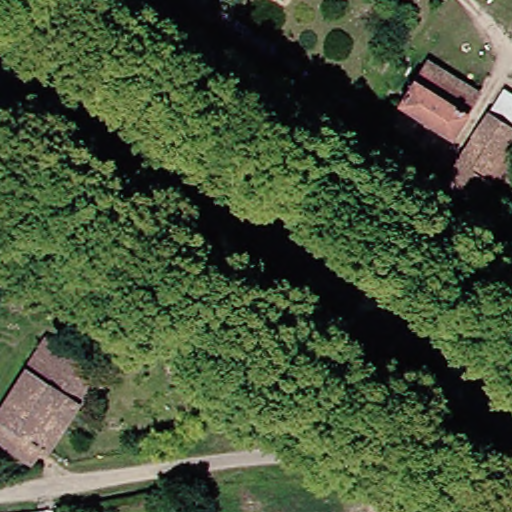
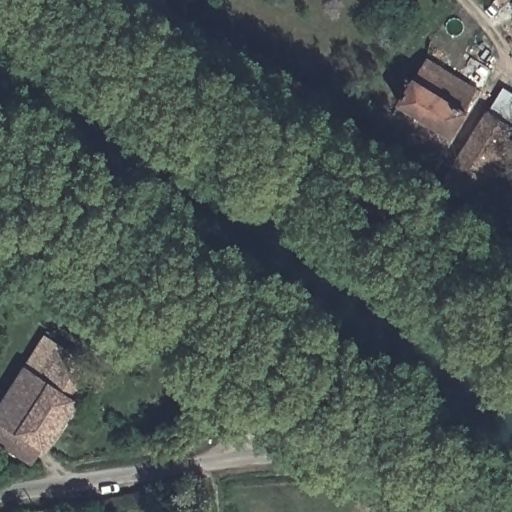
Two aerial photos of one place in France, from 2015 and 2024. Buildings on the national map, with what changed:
unchanged [(392,99),(408,72),(414,63),(468,95),(462,104),(446,131),(392,99)]
unchanged [(479,111),(512,132),(512,137),(503,151),(507,154),(502,161),(497,157),(488,152),(474,174),(449,159),(479,111)]
unchanged [(497,157),(472,198),(438,177),(449,159),(474,174),(488,152),(497,157)]
unchanged [(76,403),(65,396),(36,446),(33,444),(22,460),(0,447),(0,388),(33,335),(84,366),(95,373),(76,403)]

